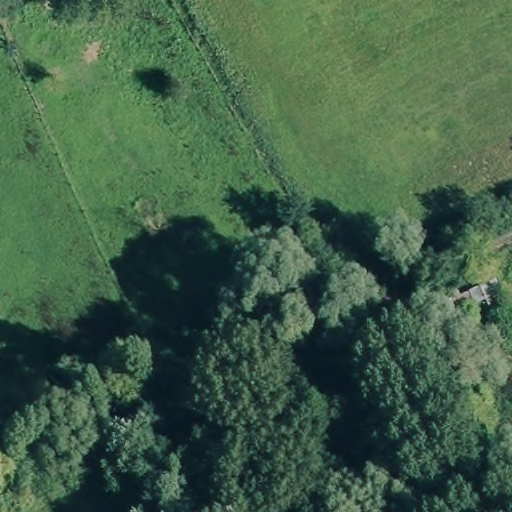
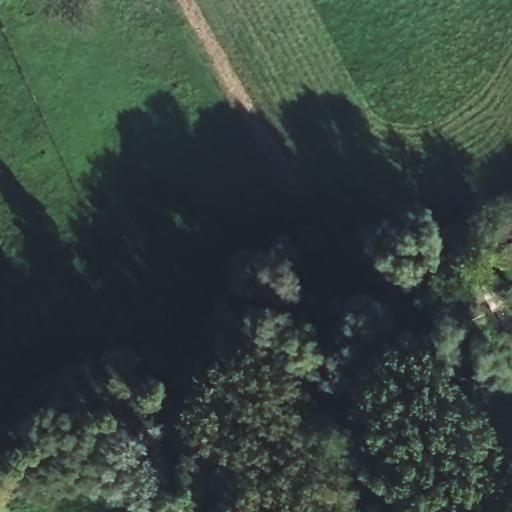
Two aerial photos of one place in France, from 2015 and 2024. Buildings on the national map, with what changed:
unchanged [(428,290),(454,272),(468,305),(442,320),(428,290)]
unchanged [(368,487),(397,474),(418,512),(380,512),(368,487)]

